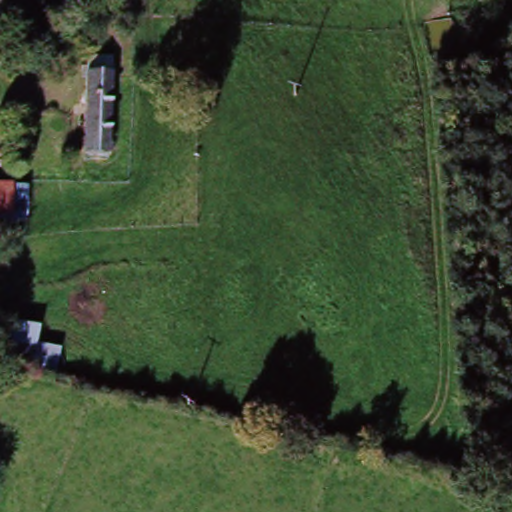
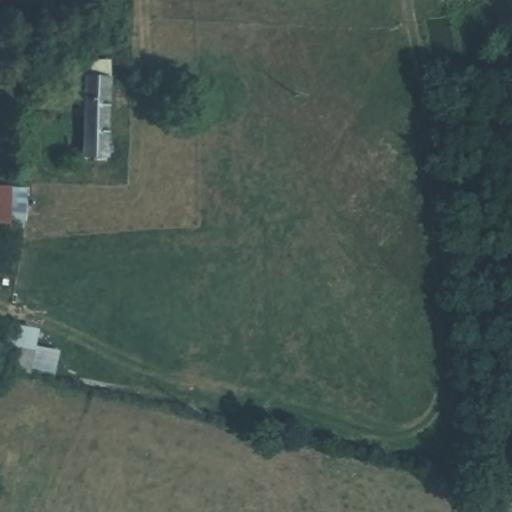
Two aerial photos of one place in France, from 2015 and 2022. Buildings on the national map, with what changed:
unchanged [(86,152),(86,135),(86,77),(86,66),(96,65),(97,76),(106,76),(106,135),(106,152),(86,152)]
unchanged [(0,183),(12,183),(10,216),(0,216),(0,183)]
unchanged [(2,321),(39,333),(27,371),(4,365),(0,364),(0,318),(3,319),(2,321)]

